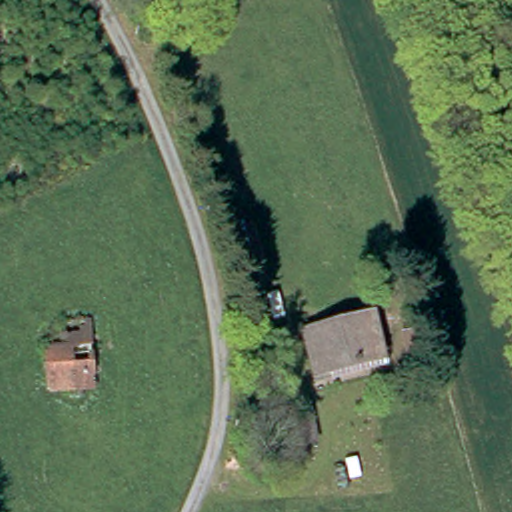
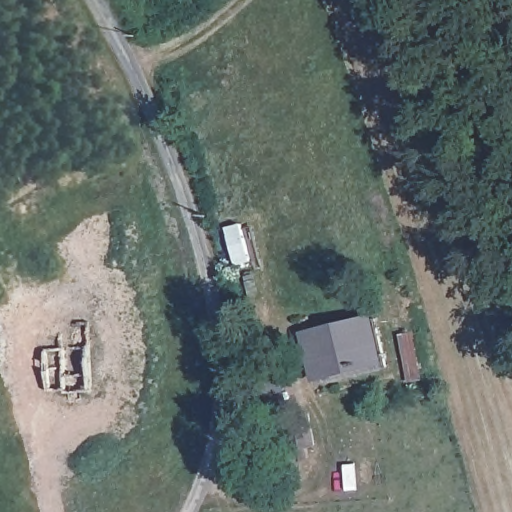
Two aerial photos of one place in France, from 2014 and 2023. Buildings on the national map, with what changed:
unchanged [(311,356),(306,327),(367,310),(374,353),(324,367),(313,369),(311,356)]
unchanged [(35,342),(34,322),(41,322),(58,322),(61,322),(65,321),(65,316),(88,317),(95,396),(80,395),(81,404),(70,404),(67,395),(45,393),(42,342),(35,342)]

